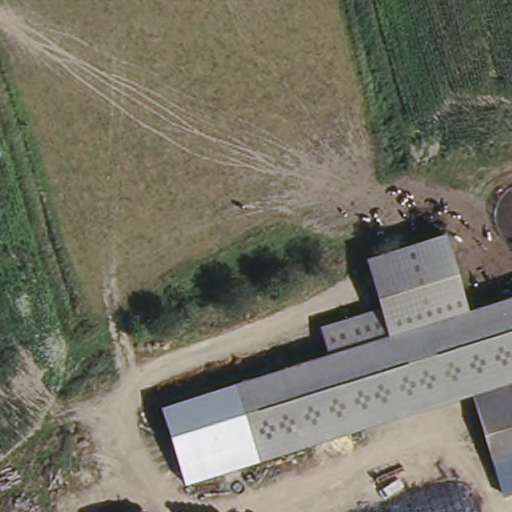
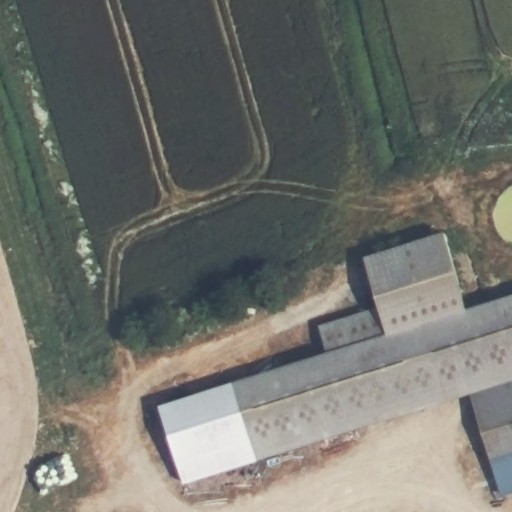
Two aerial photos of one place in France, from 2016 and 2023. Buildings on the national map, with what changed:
unchanged [(158,404),(327,350),(315,320),(372,302),(359,256),(446,230),(466,306),(512,292),(512,375),(468,388),(184,478),(158,404)]
unchanged [(492,460),(468,388),(512,375),(512,454),(492,460)]
unchanged [(512,454),(512,493),(502,496),(492,460),(512,454)]

